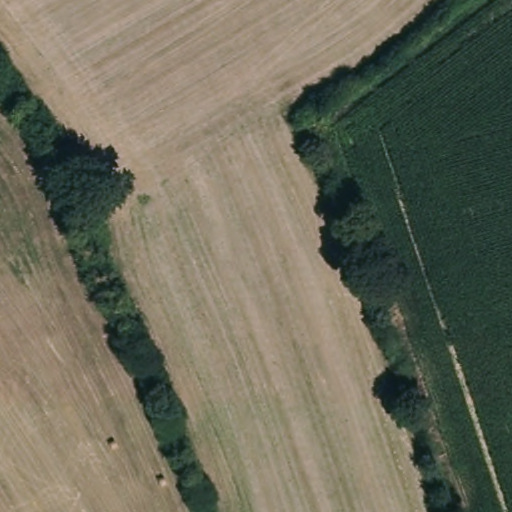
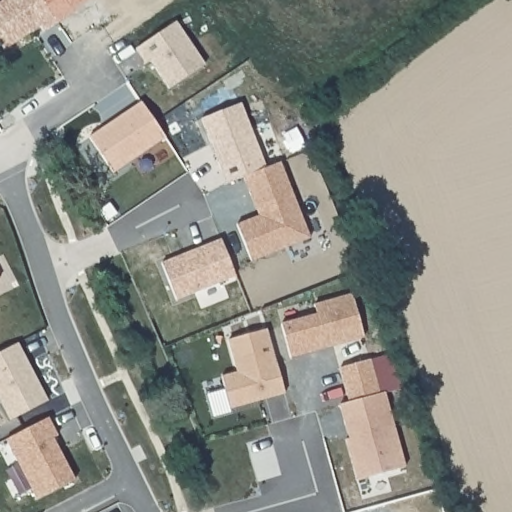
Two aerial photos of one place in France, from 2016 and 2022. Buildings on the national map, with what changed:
new [(0,41),(0,0),(45,0),(59,22),(46,32),(40,25),(5,49),(0,41)]
new [(207,63),(170,88),(152,60),(145,65),(134,49),(178,20),(207,63)]
new [(167,137),(115,173),(89,135),(141,99),(167,137)]
new [(257,214),(244,176),(227,182),(201,119),(241,101),(268,166),(281,160),(311,237),(251,261),(237,221),(257,214)]
new [(0,279),(0,276),(1,278),(0,279)]
new [(313,302),(351,292),(363,337),(290,357),(282,322),(316,312),(313,302)]
new [(267,326),(287,393),(231,409),(222,375),(237,370),(228,338),(267,326)]
new [(49,400),(10,420),(0,399),(0,351),(18,341),(49,400)]
new [(349,401),(339,366),(372,356),(406,466),(354,480),(344,439),(350,437),(340,403),(349,401)]
new [(50,415),(59,432),(54,435),(76,478),(37,498),(6,438),(50,415)]

